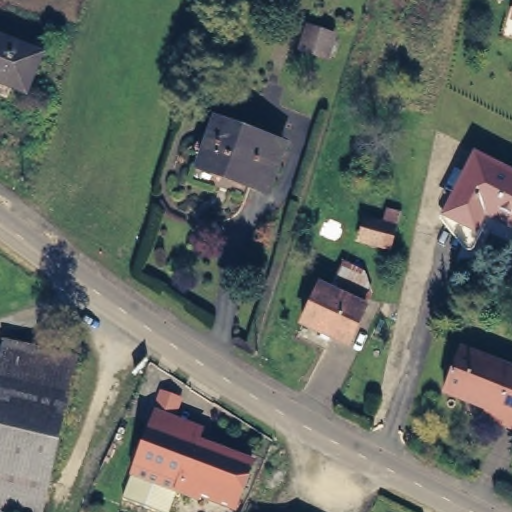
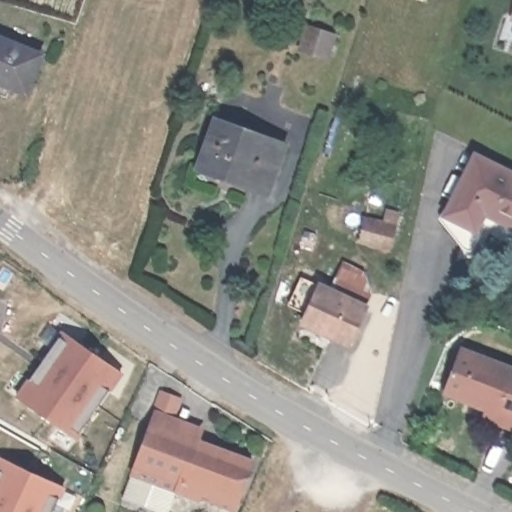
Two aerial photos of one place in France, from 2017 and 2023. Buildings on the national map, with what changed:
unchanged [(507,20),(512,8),(512,22),(507,20)]
unchanged [(300,42),(324,50),(317,71),(294,63),(300,42)]
unchanged [(24,94),(0,85),(0,43),(38,57),(24,94)]
unchanged [(215,120),(257,135),(280,143),(264,188),(199,164),(215,120)]
unchanged [(487,211),(478,228),(449,213),(479,156),(512,173),(512,224),(487,211)]
demolished [(339,256),(381,278),(365,311),(322,289),(339,256)]
unchanged [(317,291),(360,313),(344,346),(300,324),(317,291)]
new [(15,397),(64,331),(125,374),(79,440),(15,397)]
demolished [(82,354),(79,366),(77,374),(58,367),(32,355),(15,395),(8,418),(2,440),(0,447),(0,375),(8,336),(82,354)]
unchanged [(512,375),(512,424),(441,395),(460,352),(512,375)]
demolished [(10,512),(0,510),(0,447),(2,440),(8,418),(15,395),(32,355),(58,367),(77,374),(49,512),(10,512)]
unchanged [(206,500),(195,496),(175,488),(130,472),(149,422),(145,421),(156,391),(174,398),(163,427),(247,459),(232,500),(229,508),(215,504),(206,500)]
new [(56,512),(0,512),(0,457),(67,488),(56,512)]
unchanged [(166,512),(139,512),(119,504),(130,472),(175,488),(166,512)]

